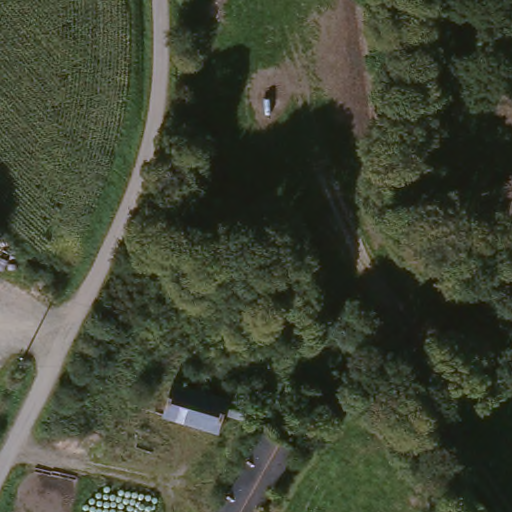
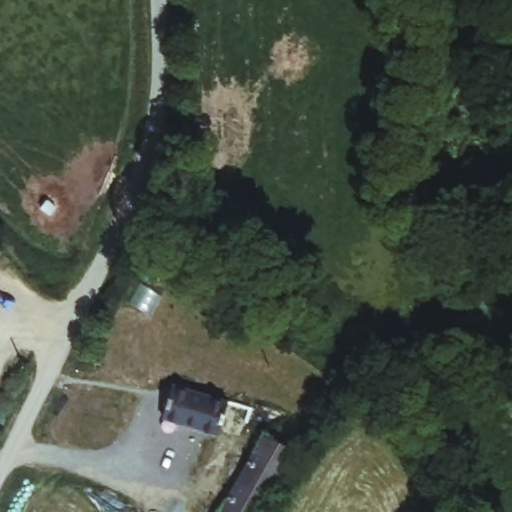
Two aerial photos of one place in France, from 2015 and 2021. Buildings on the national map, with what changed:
unchanged [(246,412),(241,427),(218,421),(213,436),(158,419),(169,387),(246,412)]
unchanged [(261,437),(291,454),(258,512),(219,512),(261,437)]

